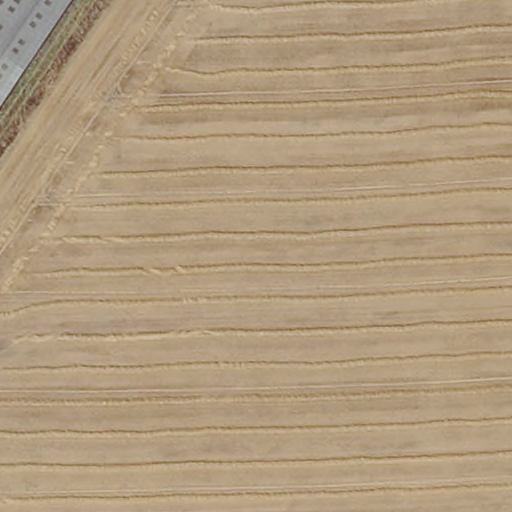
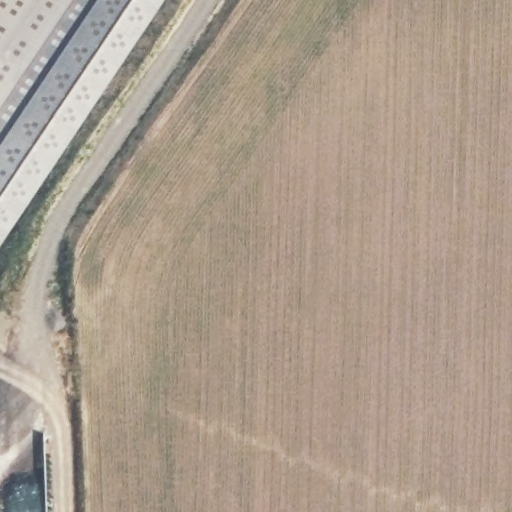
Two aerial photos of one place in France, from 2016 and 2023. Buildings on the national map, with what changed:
unchanged [(0,103),(0,0),(69,0),(0,103)]
new [(0,245),(0,103),(69,0),(163,0),(0,245)]

